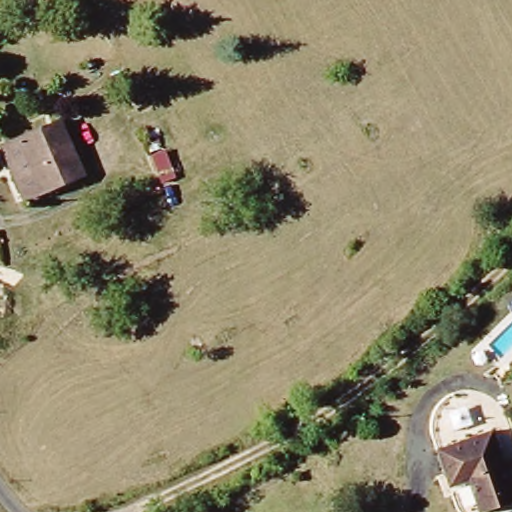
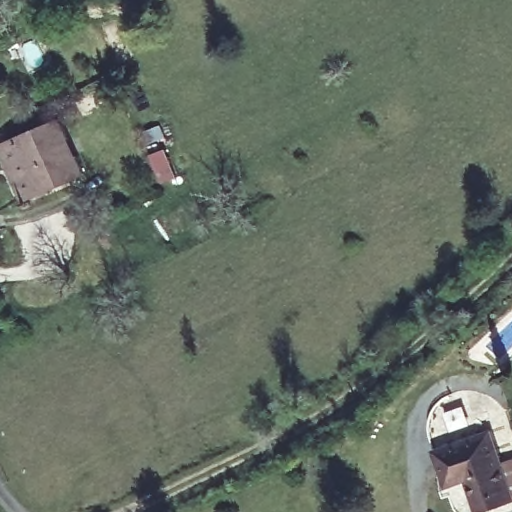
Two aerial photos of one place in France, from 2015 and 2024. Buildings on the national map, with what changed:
unchanged [(78,173),(18,197),(0,151),(0,146),(58,122),(78,173)]
unchanged [(490,427),(501,460),(512,455),(512,497),(475,509),(465,481),(448,486),(433,447),(490,427)]

